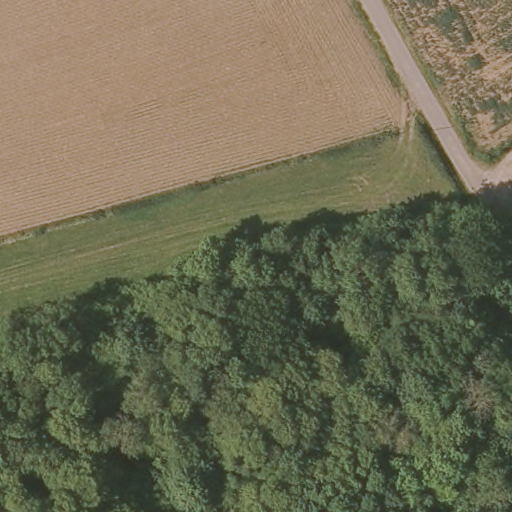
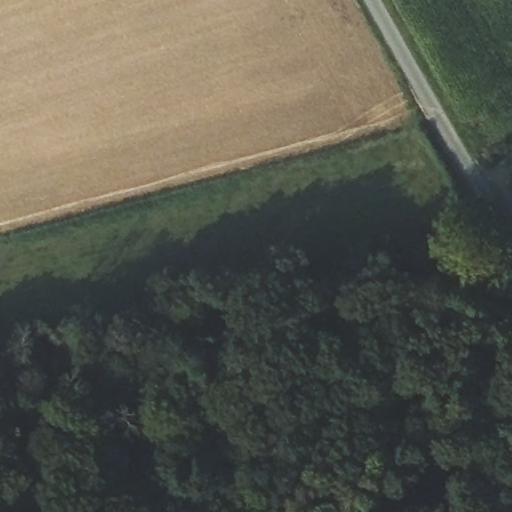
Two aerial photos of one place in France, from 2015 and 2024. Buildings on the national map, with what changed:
[]

